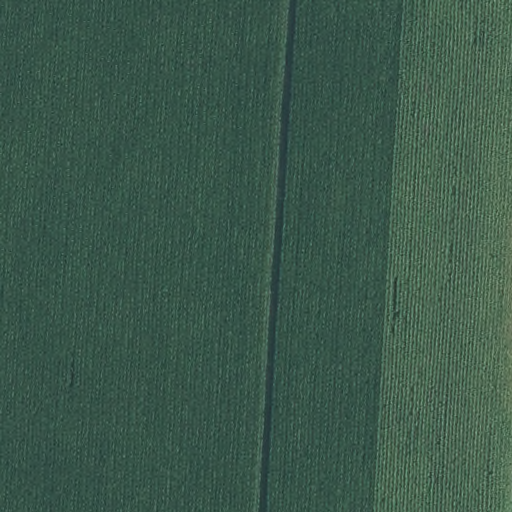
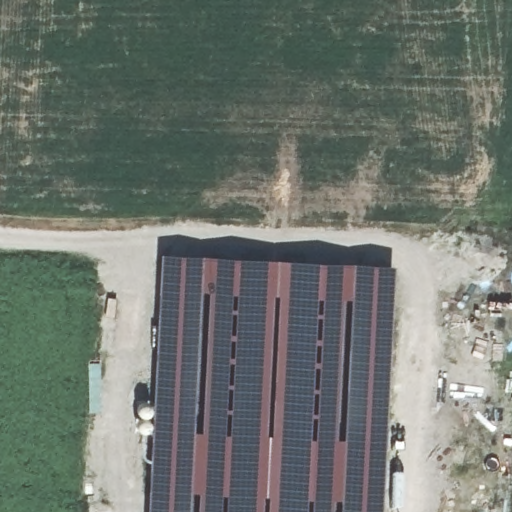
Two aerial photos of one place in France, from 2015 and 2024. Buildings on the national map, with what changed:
new [(158,250),(393,262),(387,430),(382,512),(144,512),(158,250)]
new [(87,360),(101,360),(102,411),(86,411),(87,360)]

